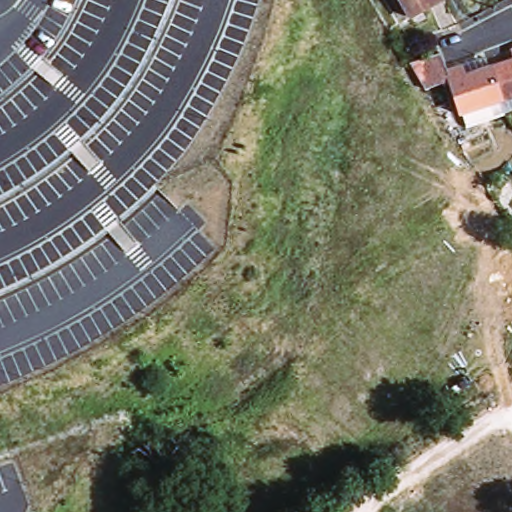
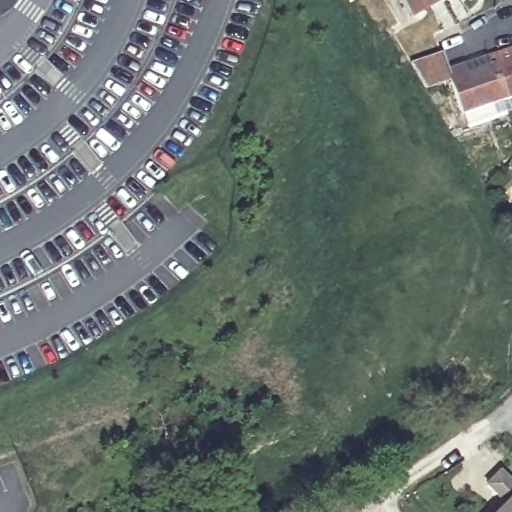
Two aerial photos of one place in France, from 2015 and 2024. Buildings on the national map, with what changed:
unchanged [(401,0),(446,0),(447,3),(413,22),(401,0)]
unchanged [(446,0),(453,0),(447,3),(446,0)]
unchanged [(512,54),(512,64),(509,55),(512,54)]
unchanged [(447,75),(461,71),(465,80),(488,73),(500,106),(457,119),(445,87),(422,96),(407,70),(441,59),(447,75)]
unchanged [(488,73),(512,66),(512,102),(500,106),(488,73)]
new [(483,486),(500,469),(512,481),(512,512),(488,512),(498,501),(483,486)]

